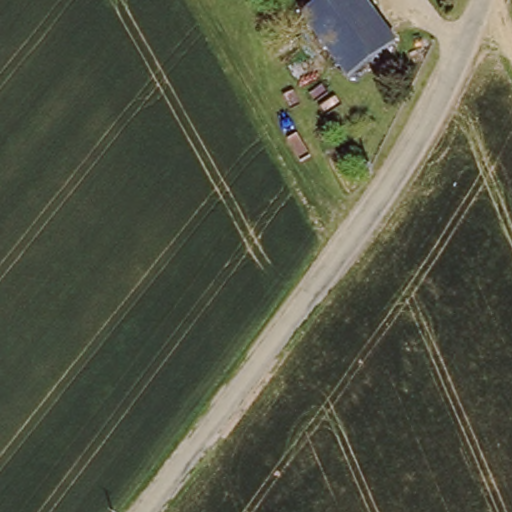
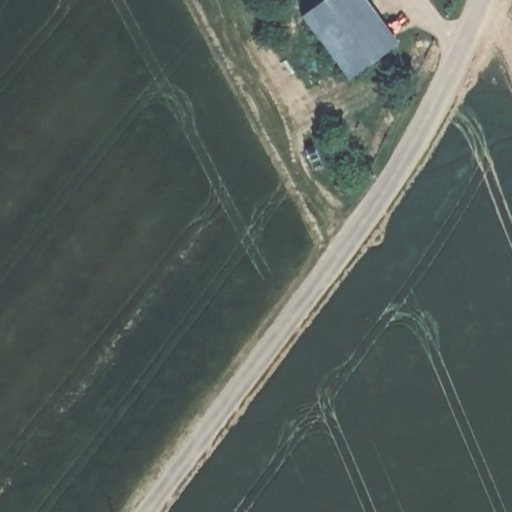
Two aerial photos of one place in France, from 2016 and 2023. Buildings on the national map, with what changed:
unchanged [(303,17),(327,0),(365,0),(397,42),(347,79),(303,17)]

